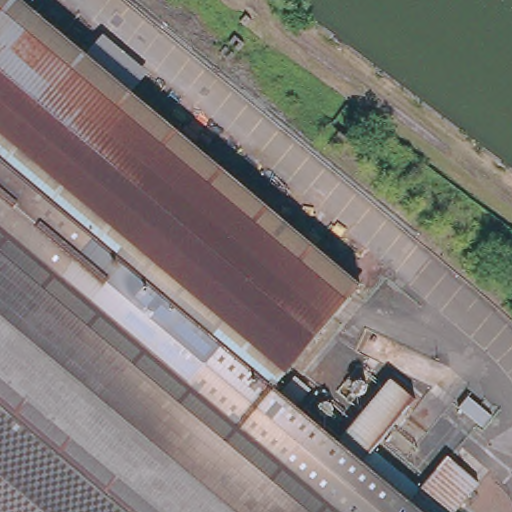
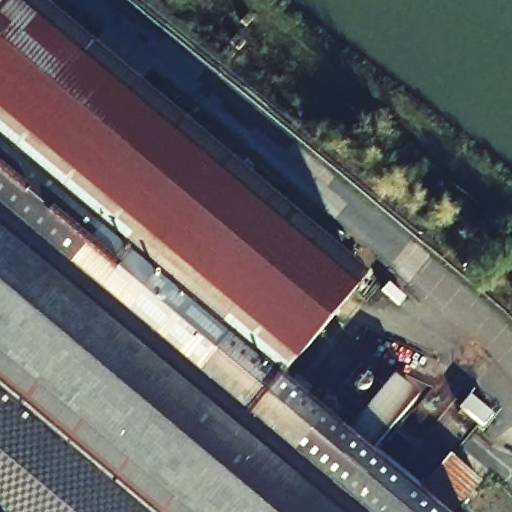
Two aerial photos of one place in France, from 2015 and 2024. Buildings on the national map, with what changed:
unchanged [(282,381),(431,512),(0,512),(0,0),(12,0),(359,289),(282,381)]

